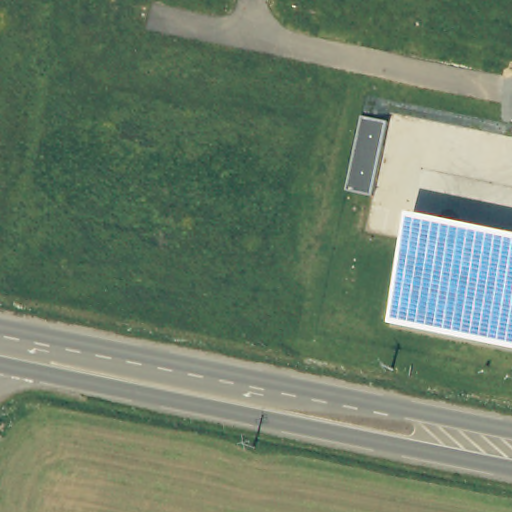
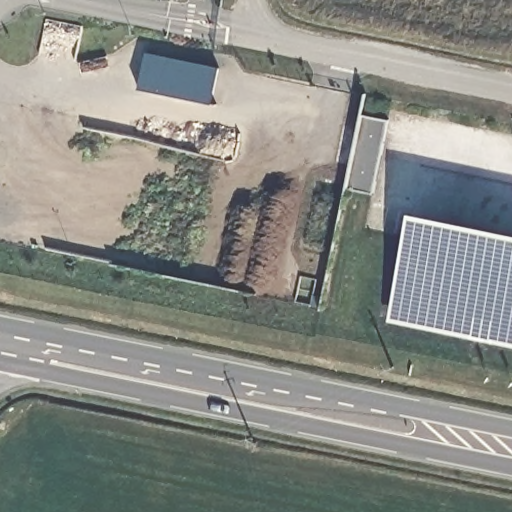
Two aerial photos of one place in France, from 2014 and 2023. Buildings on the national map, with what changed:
new [(146,55),(220,69),(212,106),(166,96),(139,91),(142,73),(146,55)]
unchanged [(350,188),(365,116),(388,122),(373,194),(350,188)]
unchanged [(512,236),(512,350),(386,323),(410,213),(512,236)]

